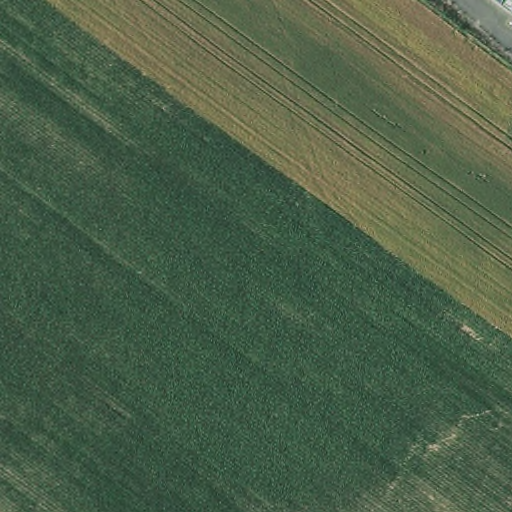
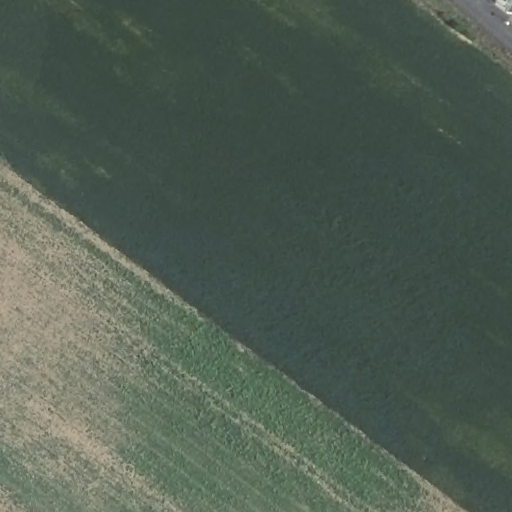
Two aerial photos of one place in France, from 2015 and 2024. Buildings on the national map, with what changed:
unchanged [(496,0),(512,0),(512,13),(496,0)]

